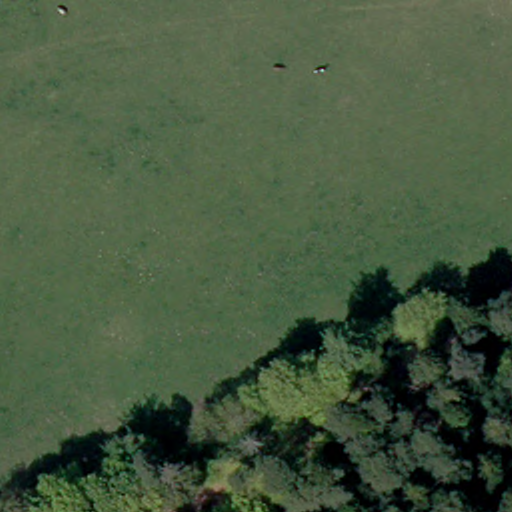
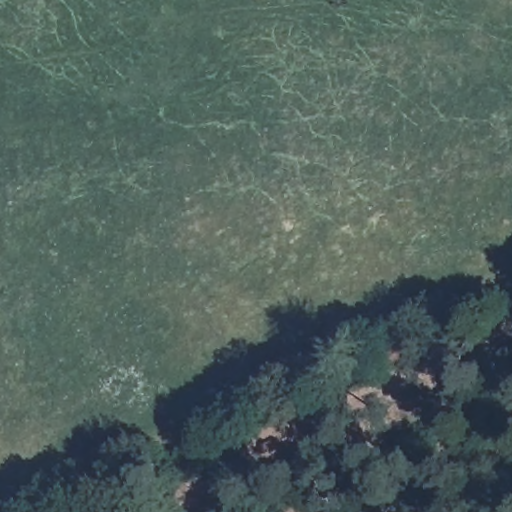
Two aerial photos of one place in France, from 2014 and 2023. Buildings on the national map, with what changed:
[]

